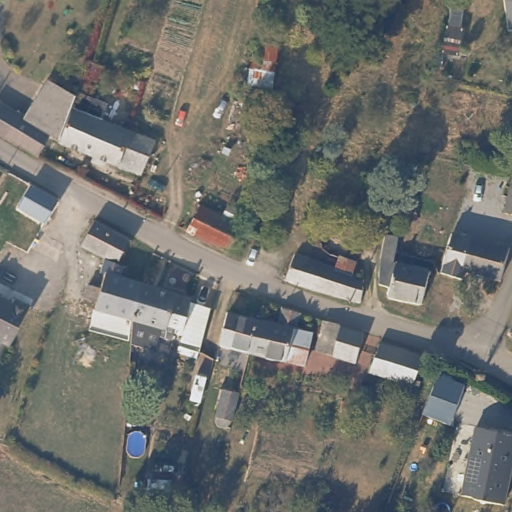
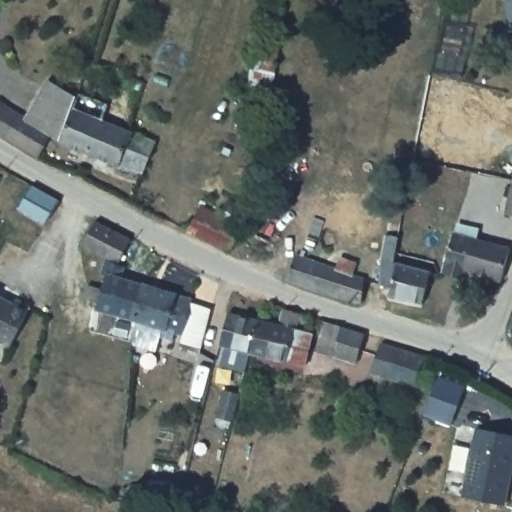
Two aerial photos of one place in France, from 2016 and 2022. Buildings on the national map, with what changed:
unchanged [(503,1),(504,0),(512,0),(512,30),(507,31),(503,1)]
unchanged [(283,42),(277,91),(249,87),(255,38),(283,42)]
unchanged [(51,132),(41,155),(16,144),(5,137),(4,135),(0,131),(0,104),(23,117),(45,78),(75,86),(62,136),(51,132)]
unchanged [(75,86),(77,82),(114,92),(107,119),(156,138),(145,172),(60,144),(62,136),(75,86)]
unchanged [(512,171),(512,220),(498,216),(512,171)]
unchanged [(60,202),(47,226),(16,210),(30,186),(60,202)]
unchanged [(245,222),(234,248),(194,228),(208,200),(245,222)]
unchanged [(82,245),(95,218),(135,239),(121,265),(107,258),(82,245)]
unchanged [(512,256),(506,273),(467,261),(462,273),(437,265),(450,222),(512,243),(512,256)]
unchanged [(415,301),(385,292),(388,282),(372,278),(385,230),(400,234),(394,257),(425,266),(415,301)]
unchanged [(353,257),(349,268),(364,275),(357,300),(310,287),(280,272),(291,249),(325,264),(333,248),(353,257)]
unchanged [(130,269),(129,277),(152,283),(145,323),(101,312),(104,305),(91,301),(95,288),(107,291),(110,279),(104,278),(107,258),(121,265),(130,269)]
unchanged [(208,353),(189,348),(191,337),(183,335),(180,342),(145,332),(146,324),(145,323),(152,283),(200,295),(200,298),(217,308),(208,353)]
unchanged [(11,302),(14,298),(28,306),(7,344),(0,341),(0,297),(11,302)]
unchanged [(280,300),(296,306),(291,324),(305,327),(298,357),(246,344),(216,337),(224,307),(253,315),(275,320),(280,300)]
unchanged [(358,328),(350,357),(307,346),(316,312),(358,328)]
unchanged [(512,324),(512,338),(509,331),(512,324)]
unchanged [(413,389),(386,381),(368,375),(376,342),(397,349),(423,357),(413,389)]
unchanged [(431,392),(438,375),(438,373),(457,382),(450,401),(446,407),(432,401),(428,399),(431,392)]
unchanged [(242,393),(239,404),(238,410),(235,426),(229,428),(222,427),(218,422),(226,390),(242,393)]
unchanged [(463,498),(475,429),(512,436),(512,468),(510,481),(505,506),(463,498)]
unchanged [(156,507),(160,487),(165,476),(185,480),(183,492),(179,511),(156,507)]

